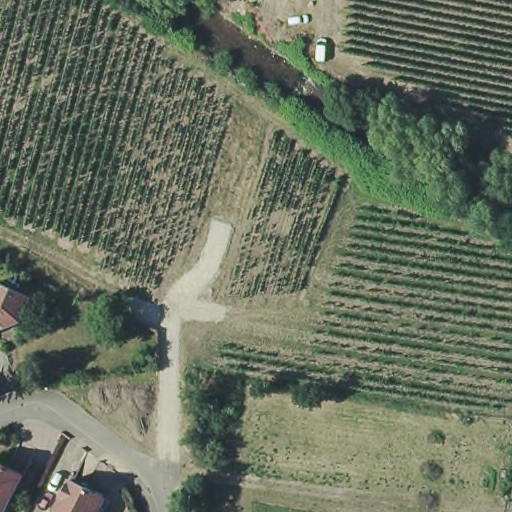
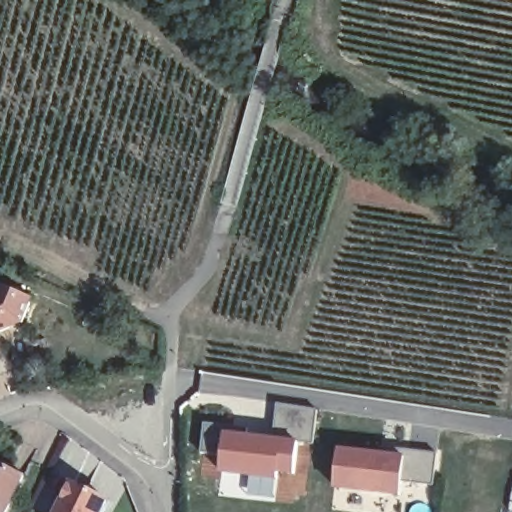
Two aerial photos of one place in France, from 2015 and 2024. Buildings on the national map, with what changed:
unchanged [(21,282),(39,290),(37,295),(30,315),(0,329),(0,283),(5,275),(21,282)]
new [(274,405),(315,410),(312,444),(296,442),(270,437),(274,405)]
new [(270,437),(296,442),(294,476),(277,475),(277,480),(215,475),(217,430),(270,437)]
new [(398,455),(399,482),(397,496),(328,488),(332,447),(398,455)]
new [(399,448),(434,453),(431,485),(399,481),(398,455),(399,448)]
unchanged [(5,509),(0,506),(0,452),(27,465),(5,509)]
unchanged [(76,475),(98,485),(97,488),(110,495),(102,512),(57,512),(76,475)]

